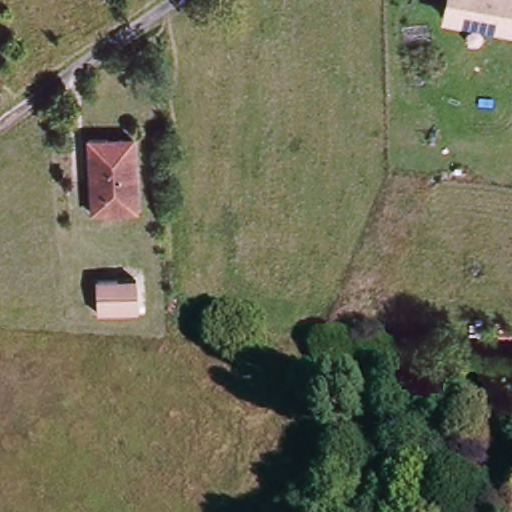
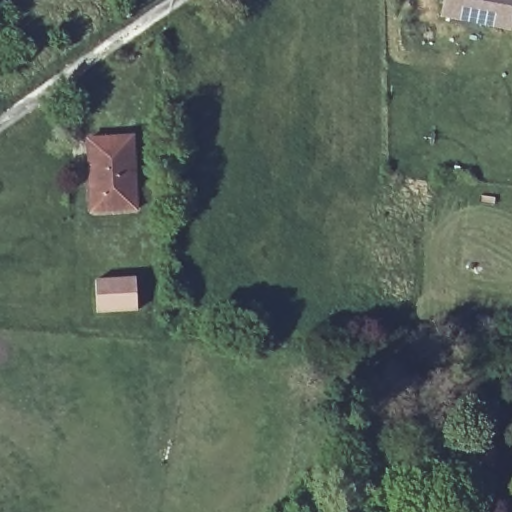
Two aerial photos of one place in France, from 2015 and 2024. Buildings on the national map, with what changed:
unchanged [(444,0),(512,0),(512,31),(440,17),(444,0)]
unchanged [(136,214),(92,216),(89,141),(134,140),(136,214)]
unchanged [(100,317),(99,283),(139,282),(140,316),(100,317)]

